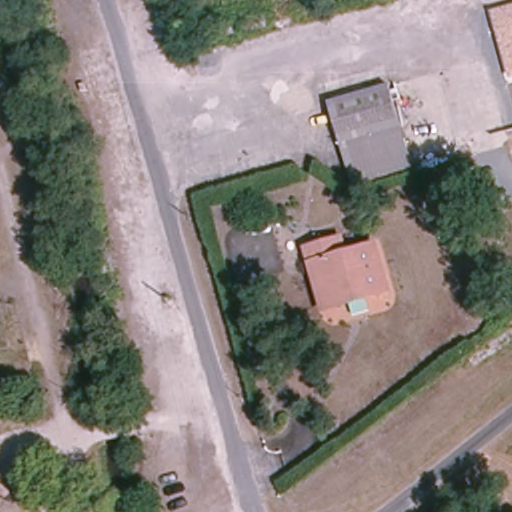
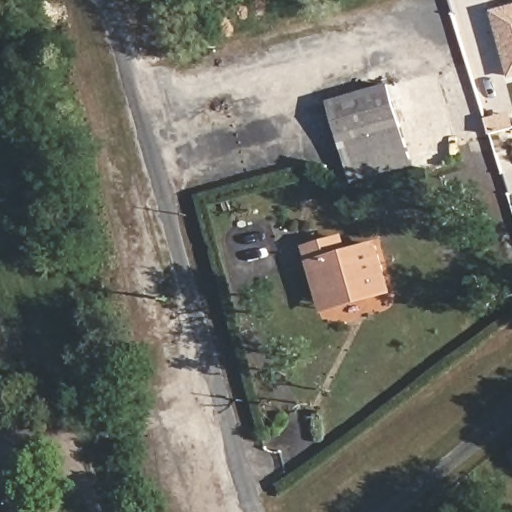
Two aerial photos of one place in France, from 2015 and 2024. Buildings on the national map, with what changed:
unchanged [(512,5),(512,72),(494,10),(512,5)]
unchanged [(413,172),(353,187),(328,101),(392,85),(413,172)]
unchanged [(323,300),(328,298),(317,262),(312,264),(307,248),(340,239),(344,254),(374,245),(390,294),(365,300),(327,311),(323,300)]
unchanged [(5,491),(0,498),(0,487),(5,491)]

